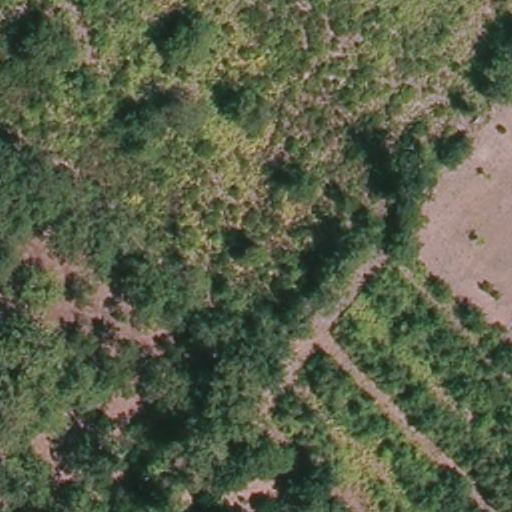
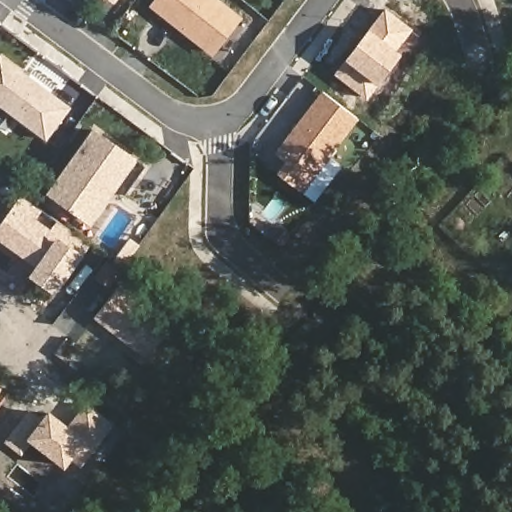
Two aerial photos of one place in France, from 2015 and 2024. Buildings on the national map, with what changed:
new [(219,0),(243,19),(216,52),(156,6),(161,0),(219,0)]
new [(396,49),(403,54),(377,86),(367,100),(335,75),(346,59),(370,28),(385,8),(413,29),(396,49)]
new [(4,56),(74,109),(50,140),(0,101),(0,61),(4,56)]
new [(328,95),(362,121),(306,195),(283,178),(293,165),(280,156),(328,95)]
new [(100,131),(148,167),(128,195),(118,187),(95,220),(56,191),(100,131)]
new [(0,241),(0,224),(21,195),(91,242),(85,253),(55,294),(29,275),(36,266),(0,241)]
new [(120,280),(174,325),(146,357),(94,317),(120,280)]
new [(67,425),(87,404),(114,425),(81,467),(72,460),(65,469),(29,441),(24,447),(9,436),(26,415),(41,426),(50,415),(67,425)]

